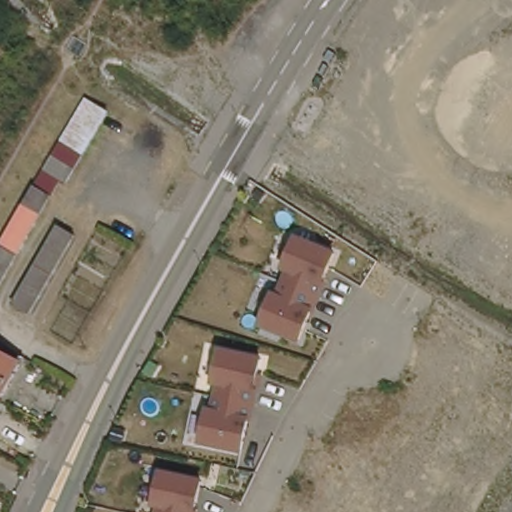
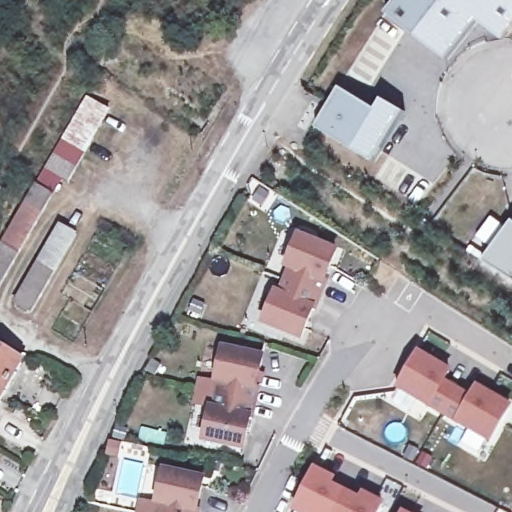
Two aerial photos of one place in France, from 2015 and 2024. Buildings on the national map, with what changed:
new [(447,61),(387,12),(396,0),(512,0),(512,27),(502,40),(479,21),(447,61)]
new [(341,88),(377,109),(383,99),(405,111),(372,161),(317,128),(341,88)]
unchanged [(87,99),(111,113),(91,152),(71,193),(60,187),(0,294),(0,257),(65,139),(87,99)]
new [(488,262),(512,227),(512,277),(488,262)]
unchanged [(59,231),(78,242),(34,316),(15,306),(59,231)]
unchanged [(340,253),(327,279),(332,280),(315,323),(312,320),(302,342),(263,327),(276,290),(280,291),(290,269),(287,267),(300,236),(340,253)]
unchanged [(0,401),(0,340),(27,356),(0,401)]
unchanged [(265,355),(260,387),(263,387),(257,427),(251,425),(245,454),(205,446),(210,404),(217,405),(220,385),(215,385),(222,348),(265,355)]
new [(397,390),(419,352),(453,372),(448,382),(472,396),(478,387),(512,406),(512,411),(492,446),(397,390)]
new [(337,480),(335,486),(361,499),(365,493),(387,504),(382,512),(294,512),(315,468),(337,480)]
unchanged [(201,510),(205,511),(204,512),(159,512),(160,505),(157,504),(164,470),(208,479),(201,510)]

